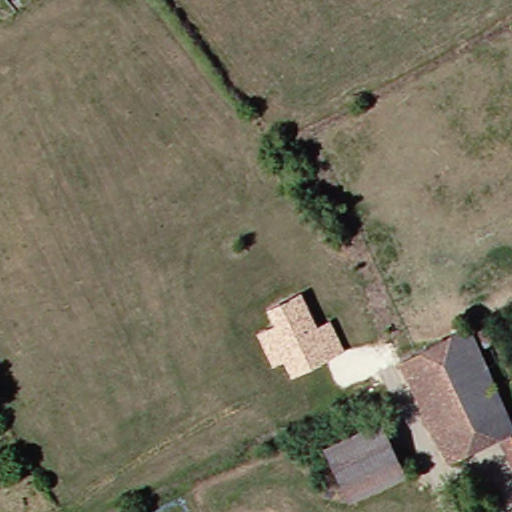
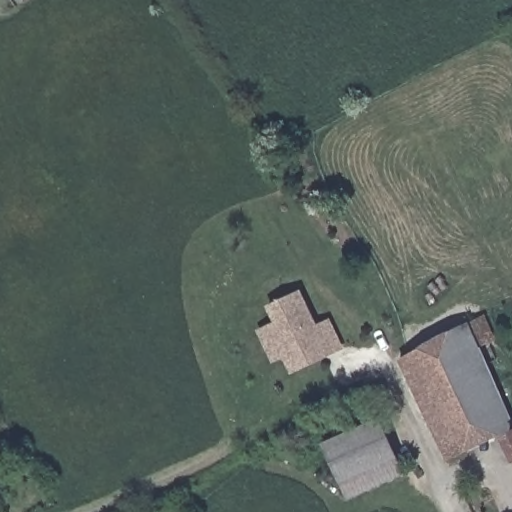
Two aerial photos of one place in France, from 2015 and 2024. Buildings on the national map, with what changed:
unchanged [(316,323),(330,318),(343,348),(290,375),(282,359),(272,364),(257,330),(273,322),(266,307),(302,289),(316,323)]
unchanged [(438,462),(390,363),(468,321),(480,346),(467,353),(484,391),(492,388),(496,397),(488,400),(502,432),(486,440),(454,455),(438,462)]
unchanged [(374,422),(397,476),(342,502),(318,447),(374,422)]
unchanged [(512,430),(512,458),(501,435),(512,430)]

